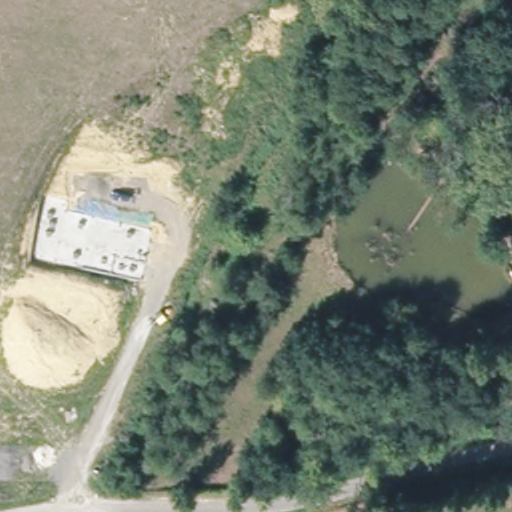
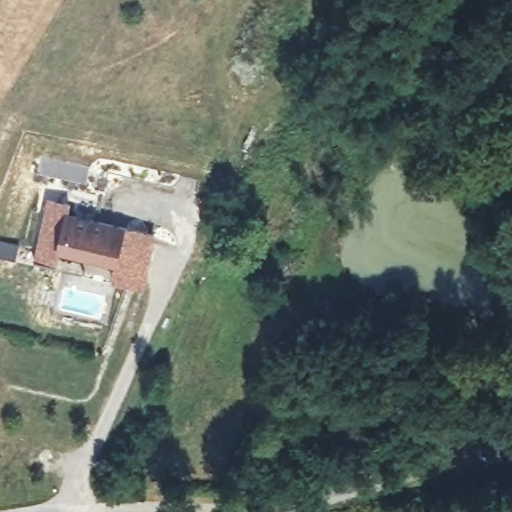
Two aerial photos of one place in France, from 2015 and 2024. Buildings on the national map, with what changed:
new [(63,245),(59,263),(35,258),(50,195),(74,201),(71,211),(160,232),(151,266),(147,284),(116,277),(120,259),(63,245)]

